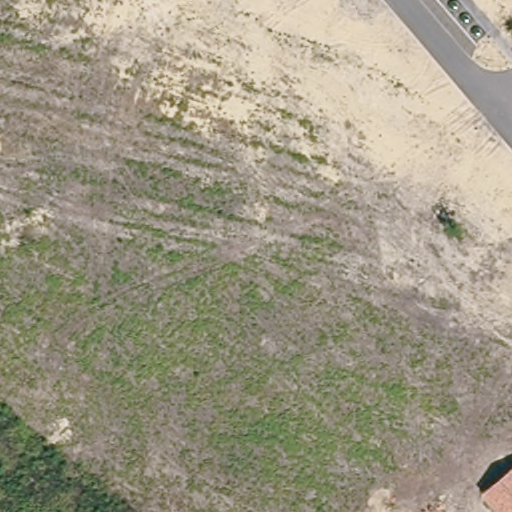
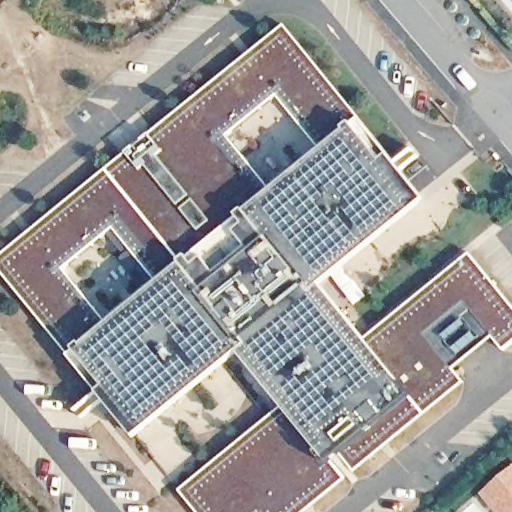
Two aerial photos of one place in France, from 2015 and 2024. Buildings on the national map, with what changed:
new [(392,155),(428,200),(324,285),(367,338),(471,253),(512,302),(512,345),(507,350),(496,336),(455,369),(467,382),(356,471),(346,452),(337,460),(348,476),(304,512),(201,512),(182,490),(284,404),(242,351),(139,436),(103,390),(71,353),(0,266),(0,257),(286,24),(363,119),(392,155)]
unchanged [(482,494),(512,468),(512,512),(497,512),(482,494)]

